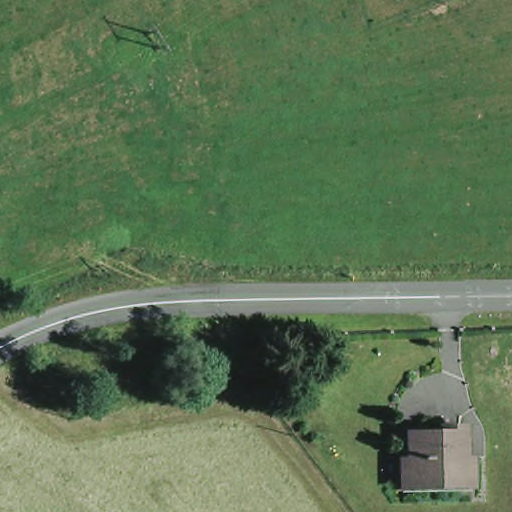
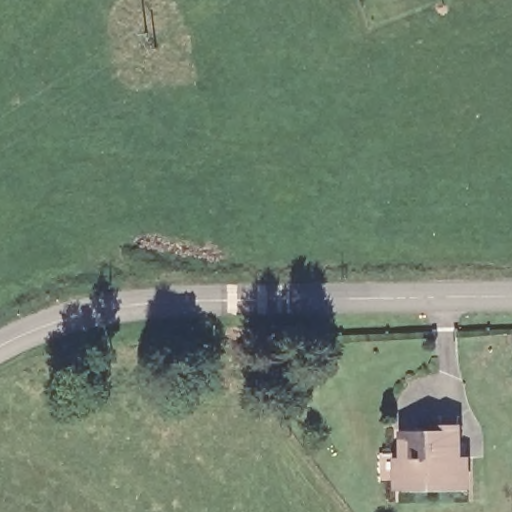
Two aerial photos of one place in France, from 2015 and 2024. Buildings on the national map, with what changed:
unchanged [(400,488),(400,464),(407,464),(408,442),(430,442),(430,433),(440,433),(461,433),(462,461),(469,461),(470,486),(470,496),(400,497),(400,488)]

